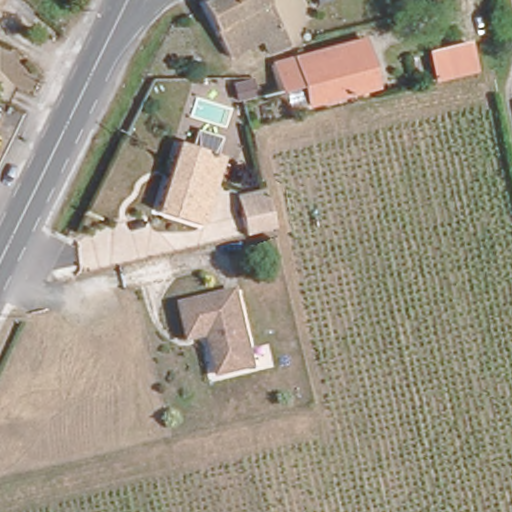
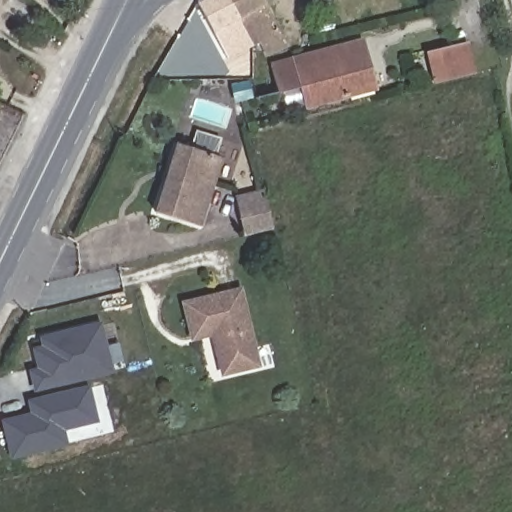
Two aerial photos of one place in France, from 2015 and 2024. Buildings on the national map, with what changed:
unchanged [(229,59),(199,6),(209,0),(225,0),(251,46),(229,59)]
unchanged [(268,55),(260,42),(251,46),(225,0),(263,0),(287,45),(268,55)]
unchanged [(315,6),(314,0),(332,0),(332,2),(315,6)]
unchanged [(271,63),(293,58),(363,40),(375,89),(307,108),(301,86),(278,93),(271,63)]
unchanged [(424,59),(461,50),(469,79),(431,88),(424,59)]
unchanged [(223,158),(201,227),(155,210),(175,143),(223,158)]
unchanged [(262,190),(271,230),(244,236),(235,196),(262,190)]
unchanged [(254,365),(217,373),(210,339),(214,339),(212,331),(187,337),(180,302),(238,290),(254,365)]
new [(34,393),(27,369),(36,367),(31,348),(41,345),(39,336),(101,321),(114,373),(34,393)]
new [(65,431),(69,446),(10,460),(0,419),(30,412),(26,400),(90,385),(99,423),(65,431)]

